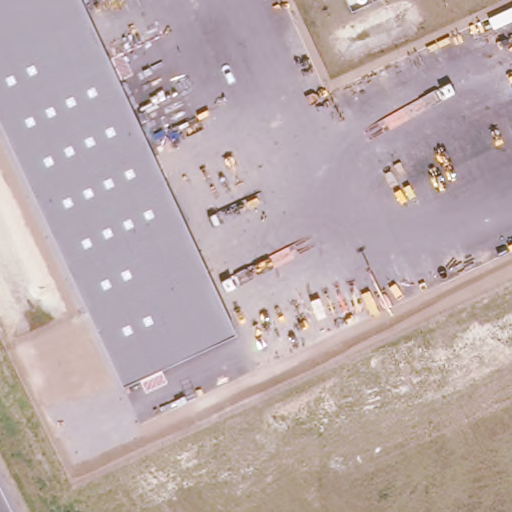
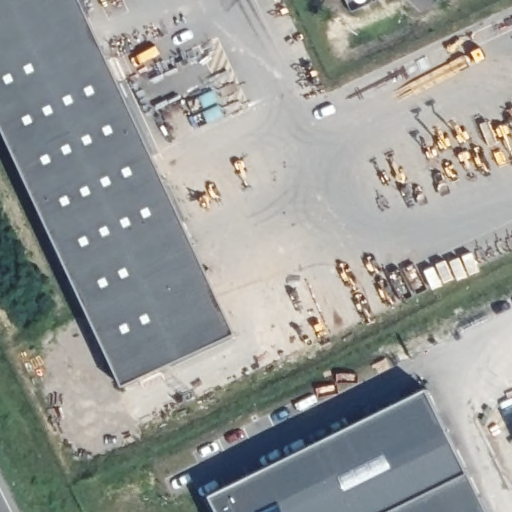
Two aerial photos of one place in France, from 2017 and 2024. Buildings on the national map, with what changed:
unchanged [(123,375),(0,101),(0,0),(81,0),(223,325),(123,375)]
new [(491,512),(221,512),(213,495),(430,387),(491,512)]

